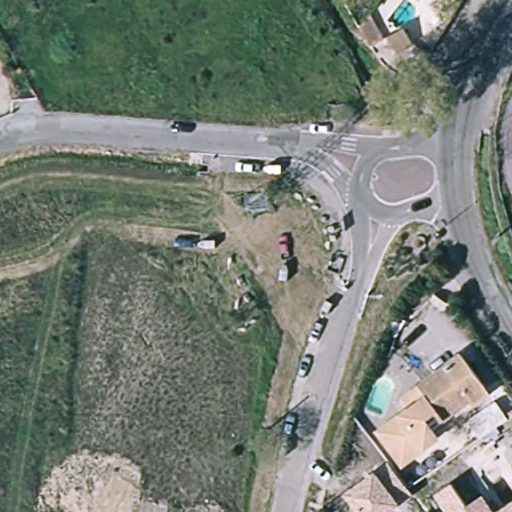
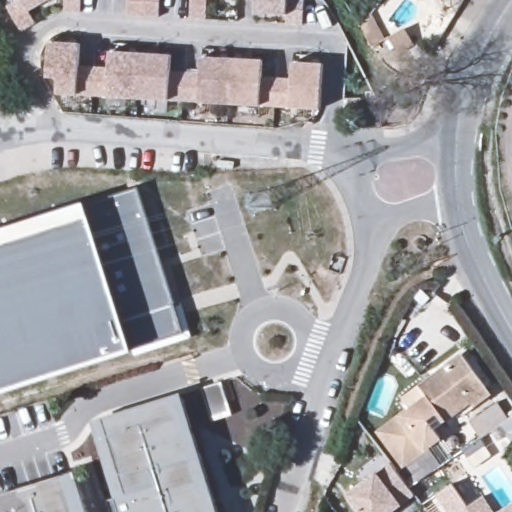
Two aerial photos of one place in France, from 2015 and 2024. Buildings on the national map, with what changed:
new [(35,17),(21,25),(6,0),(7,0),(36,0),(28,5),(35,17)]
new [(63,10),(64,0),(81,0),(80,11),(63,10)]
new [(159,0),(158,15),(126,14),(127,0),(159,0)]
new [(207,0),(206,18),(189,17),(190,0),(207,0)]
new [(284,17),(285,8),(253,6),(253,0),(302,0),(301,18),(284,17)]
unchanged [(399,54),(391,39),(407,30),(414,45),(399,54)]
new [(47,37),(78,39),(76,61),(106,64),(108,46),(169,50),(168,67),(198,69),(198,52),(261,56),(259,72),(289,74),(290,57),(321,59),(319,104),(55,89),(55,72),(45,72),(47,37)]
new [(0,390),(0,229),(85,203),(136,189),(183,332),(128,348),(0,390)]
unchanged [(407,321),(397,337),(388,331),(397,315),(407,321)]
unchanged [(487,388),(433,428),(441,439),(404,466),(380,433),(411,410),(404,401),(464,357),(487,388)]
new [(91,420),(181,392),(218,512),(121,512),(91,420)]
unchanged [(509,419),(482,438),(469,420),(497,400),(509,419)]
unchanged [(414,495),(394,512),(358,512),(346,495),(389,462),(414,495)]
new [(0,495),(73,470),(86,512),(0,512),(0,495)]
unchanged [(468,505),(484,495),(495,512),(447,512),(435,494),(453,482),(468,505)]
unchanged [(512,501),(512,512),(496,512),(512,501)]

